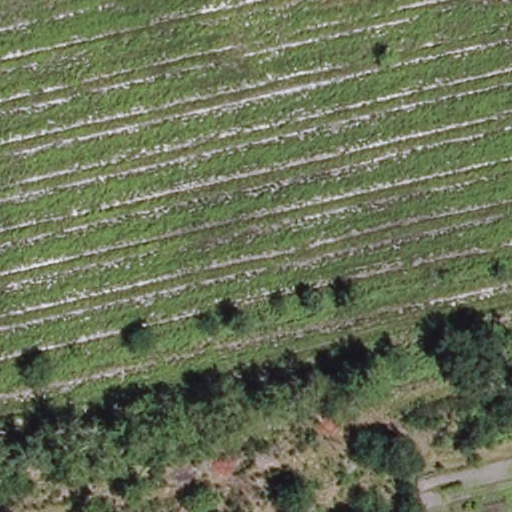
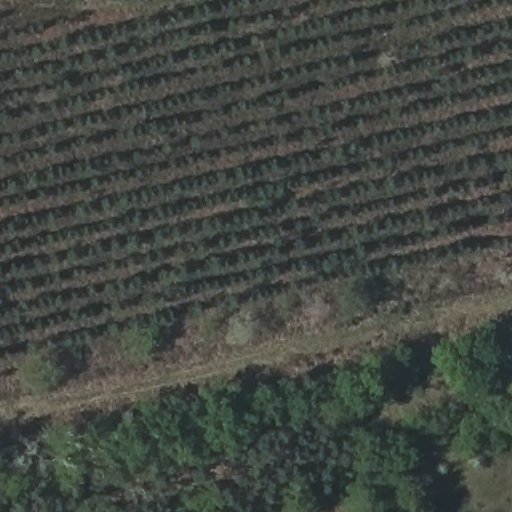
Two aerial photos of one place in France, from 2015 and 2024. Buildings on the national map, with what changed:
[]

